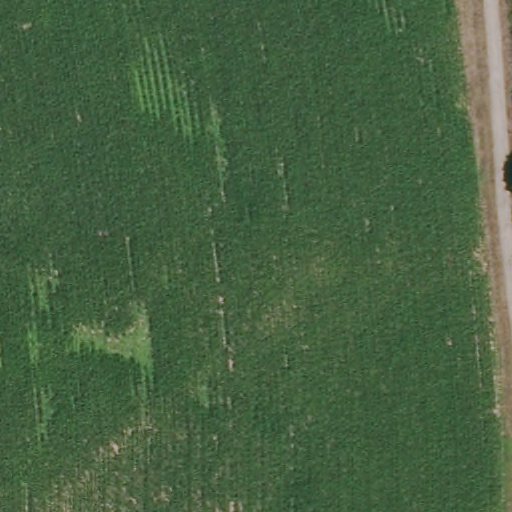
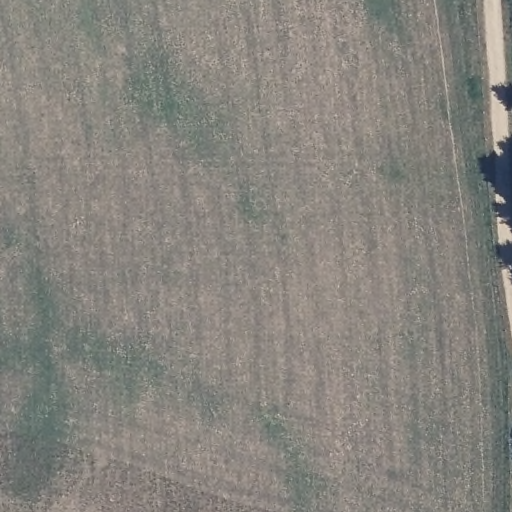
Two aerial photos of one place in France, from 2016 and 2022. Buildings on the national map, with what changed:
[]

